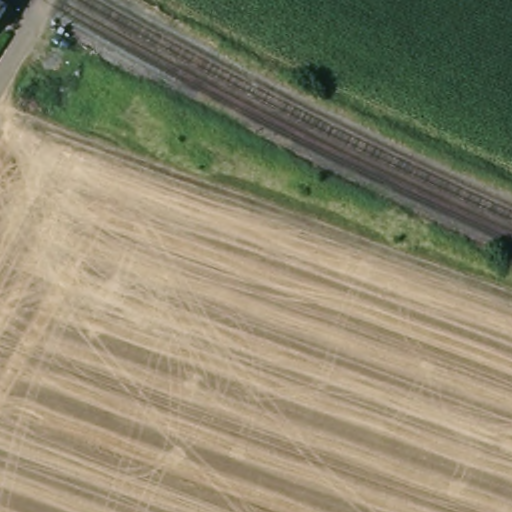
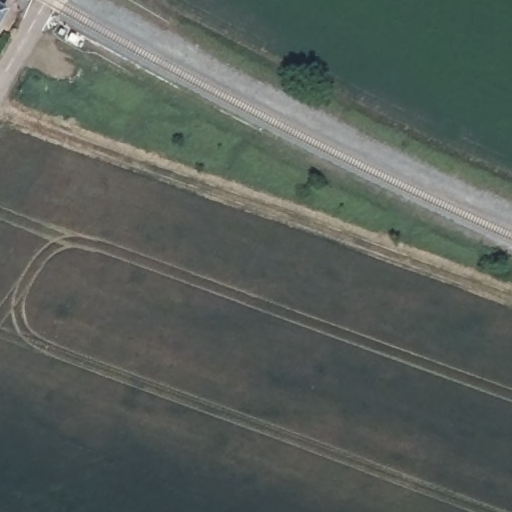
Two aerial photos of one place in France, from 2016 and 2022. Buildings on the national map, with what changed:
unchanged [(0,21),(0,3),(9,8),(0,21)]

